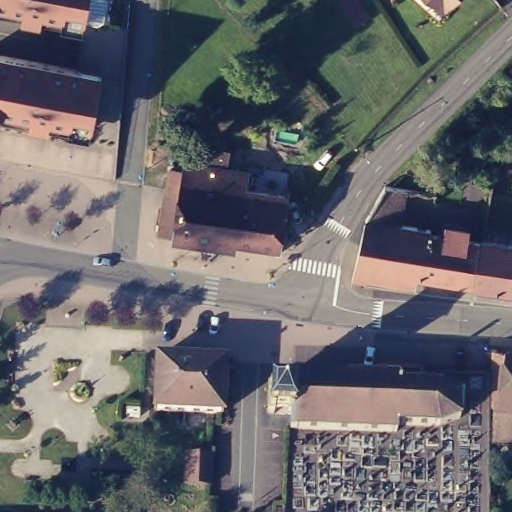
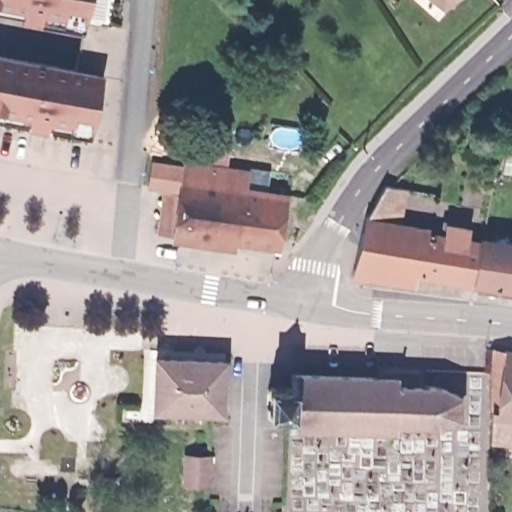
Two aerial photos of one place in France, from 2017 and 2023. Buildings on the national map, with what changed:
unchanged [(87,32),(0,14),(0,0),(91,0),(87,32)]
unchanged [(95,132),(87,130),(86,136),(49,128),(49,135),(31,132),(33,125),(0,118),(0,53),(103,73),(95,132)]
unchanged [(188,241),(188,247),(170,244),(177,186),(178,186),(181,170),(242,179),(240,195),(281,201),(275,253),(231,247),(215,245),(188,241)]
unchanged [(367,258),(365,271),(352,269),(366,210),(385,176),(405,179),(440,184),(437,205),(401,206),(399,215),(431,220),(430,225),(446,227),(447,216),(467,220),(466,231),(482,233),(482,231),(483,231),(477,276),(367,258)]
unchanged [(480,276),(477,276),(483,231),(512,235),(512,287),(497,285),(478,282),(480,276)]
unchanged [(497,438),(497,406),(496,406),(497,344),(512,346),(512,359),(512,438),(497,438)]
unchanged [(157,353),(225,356),(222,409),(155,406),(157,353)]
unchanged [(440,381),(460,391),(460,414),(438,422),(397,420),(396,428),(290,424),(291,410),(287,410),(287,408),(275,408),(275,409),(270,409),(270,408),(269,408),(269,403),(270,403),(271,389),(270,389),(270,384),(271,384),(271,383),(276,383),(276,384),(288,385),(288,383),(292,383),(292,369),(380,372),(380,363),(421,364),(420,381),(440,381)]
unchanged [(186,455),(212,456),(210,487),(185,485),(186,455)]

